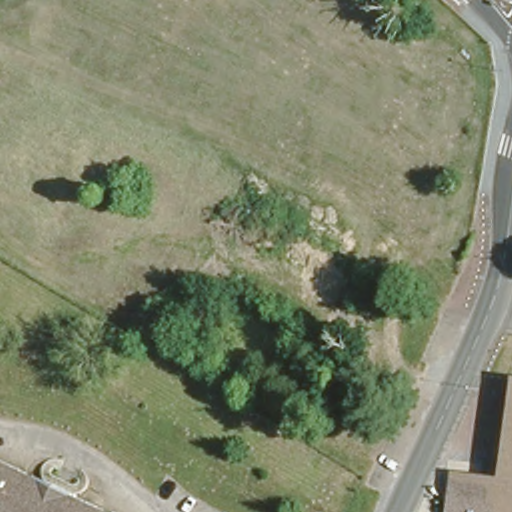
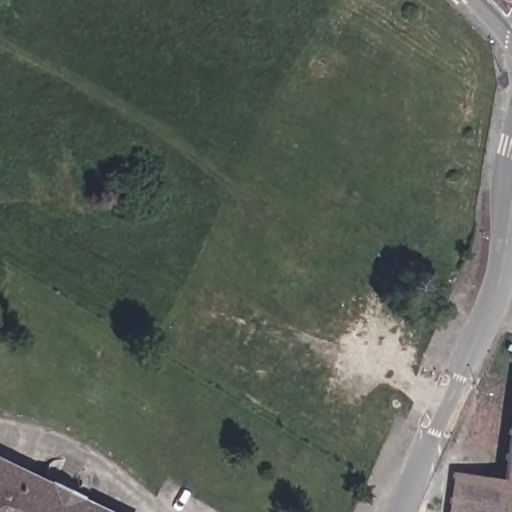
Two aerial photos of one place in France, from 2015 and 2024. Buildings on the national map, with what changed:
unchanged [(469,465),(505,470),(512,408),(512,512),(445,512),(448,492),(452,463),(469,465)]
unchanged [(45,448),(98,473),(89,493),(130,512),(0,512),(0,448),(37,465),(45,448)]

